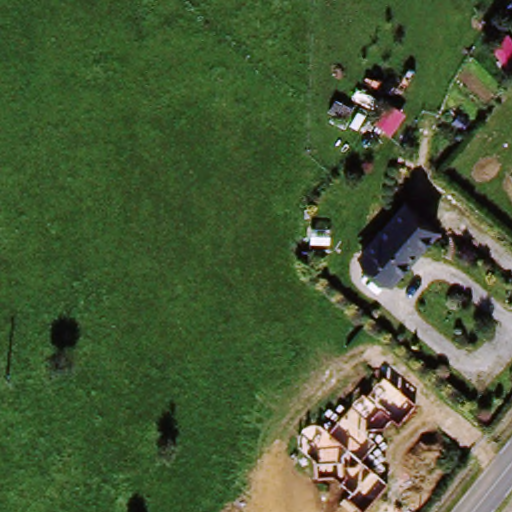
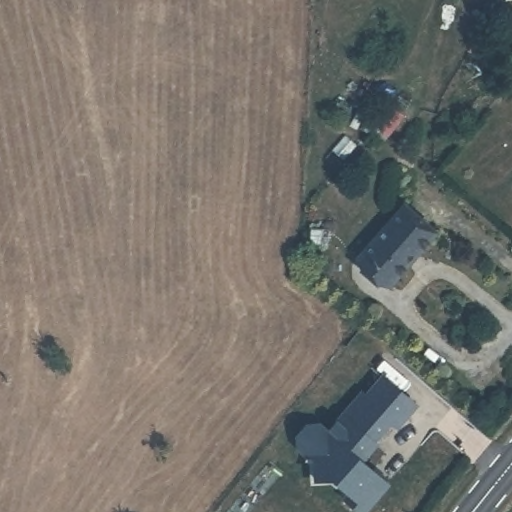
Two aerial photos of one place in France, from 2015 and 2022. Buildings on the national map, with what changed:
unchanged [(407,261),(405,259),(394,270),(395,274),(382,290),(349,262),(393,214),(426,241),(407,261)]
new [(419,405),(397,429),(391,423),(377,441),(380,444),(363,460),(391,484),(366,512),(357,512),(342,499),(346,494),(332,481),(313,482),(312,459),(306,458),(295,449),(296,435),(304,424),(319,421),(328,428),(360,390),(365,393),(381,374),(419,405)]

